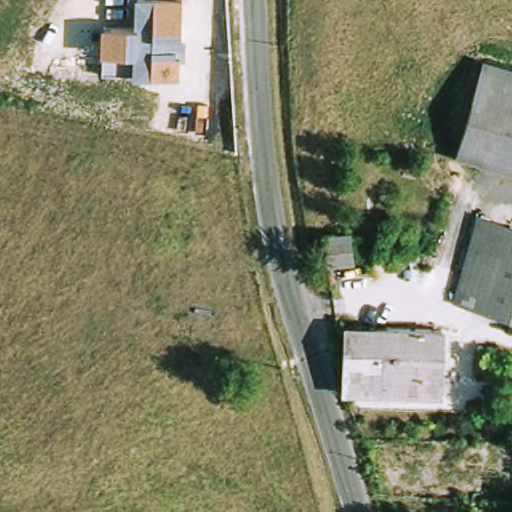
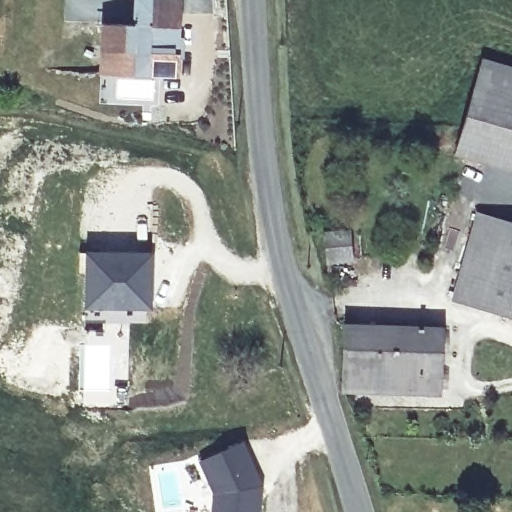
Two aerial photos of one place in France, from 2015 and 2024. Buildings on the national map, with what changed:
unchanged [(175,76),(131,71),(133,52),(101,50),(101,27),(135,27),(138,0),(149,0),(180,2),(175,76)]
unchanged [(512,171),(455,155),(474,87),(482,59),(512,68),(512,171)]
unchanged [(454,300),(478,214),(509,222),(485,308),(454,300)]
unchanged [(512,316),(485,308),(509,222),(512,223),(512,316)]
unchanged [(350,260),(327,262),(324,234),(348,232),(350,260)]
new [(151,310),(82,307),(82,251),(152,255),(151,310)]
unchanged [(440,329),(438,393),(342,390),(344,326),(440,329)]
new [(262,483),(261,507),(260,512),(210,512),(211,494),(197,459),(243,439),(262,483)]

